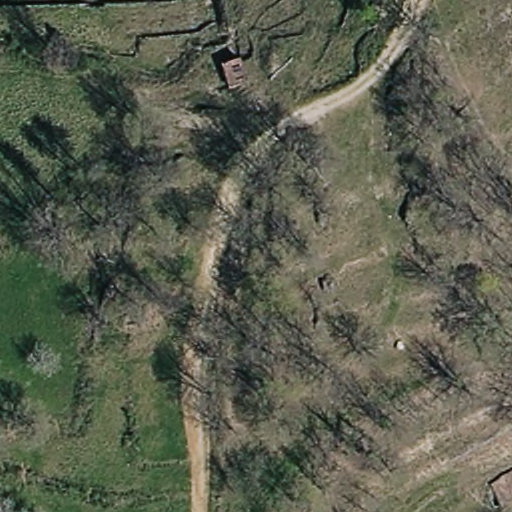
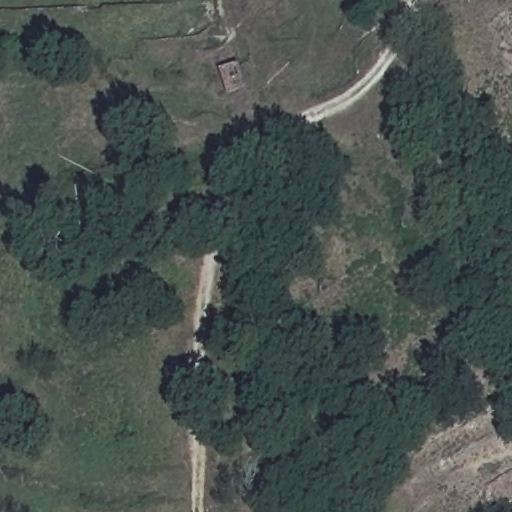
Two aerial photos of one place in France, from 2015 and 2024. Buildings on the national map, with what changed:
unchanged [(222,63),(242,62),(248,88),(228,92),(222,63)]
unchanged [(496,506),(489,480),(512,471),(512,501),(496,506)]

